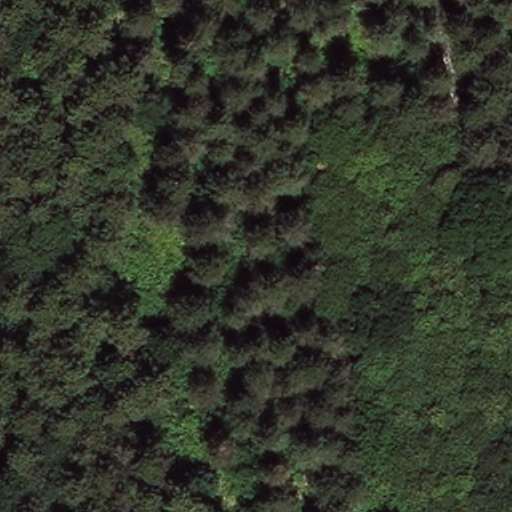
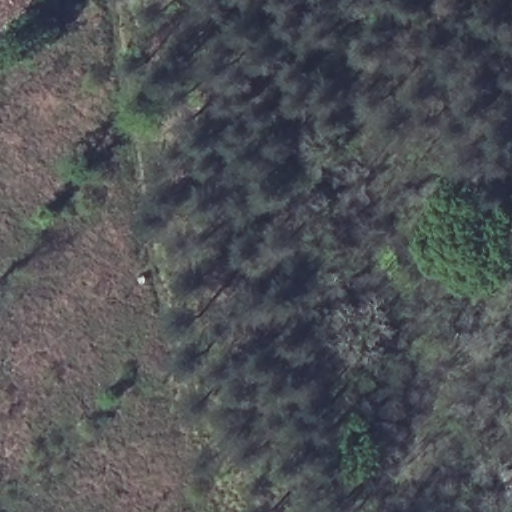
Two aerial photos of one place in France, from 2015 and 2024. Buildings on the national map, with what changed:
unchanged [(511,493),(504,472),(512,470),(512,493),(511,493)]

